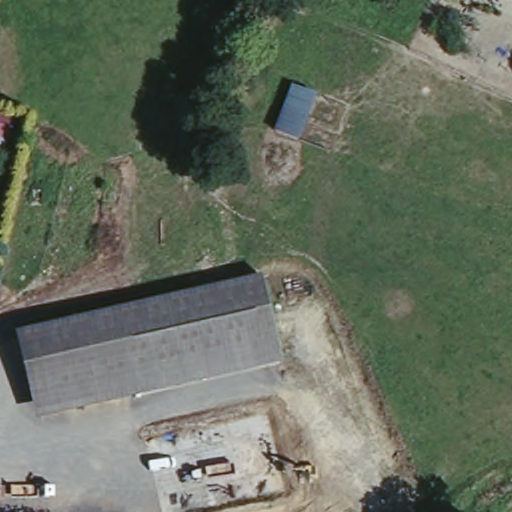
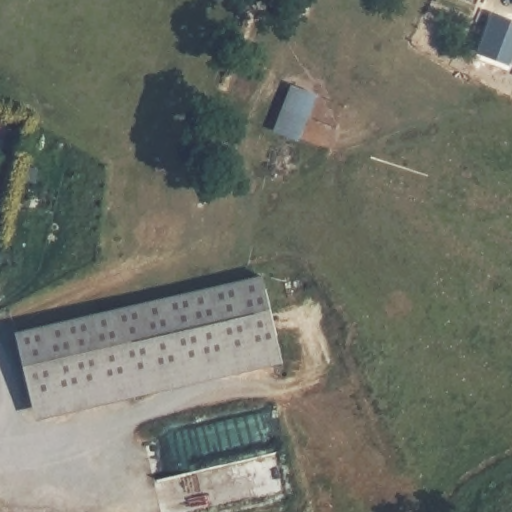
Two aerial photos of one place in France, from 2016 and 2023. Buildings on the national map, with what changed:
new [(477,54),(493,15),(512,22),(512,63),(511,66),(477,54)]
unchanged [(272,134),(289,86),(315,96),(295,145),(272,134)]
unchanged [(0,137),(0,101),(20,106),(14,128),(12,128),(10,140),(0,137)]
unchanged [(263,275),(283,360),(37,419),(18,334),(263,275)]

